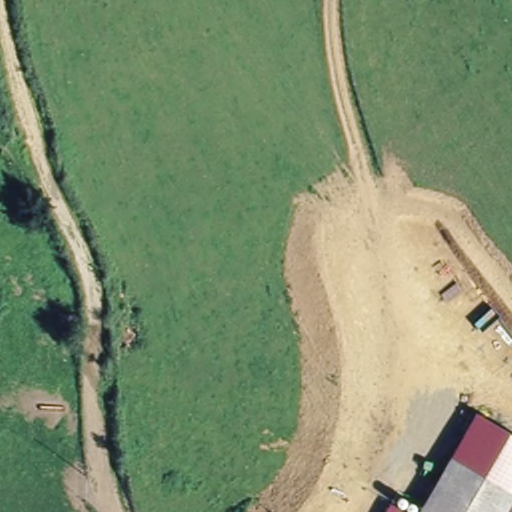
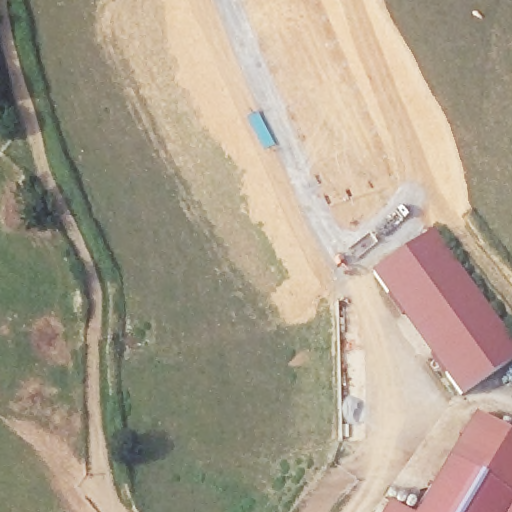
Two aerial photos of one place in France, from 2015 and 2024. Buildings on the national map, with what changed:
new [(433,229),(512,339),(512,361),(461,397),(373,274),(433,229)]
unchanged [(462,420),(512,443),(512,512),(419,512),(441,465),(462,420)]

